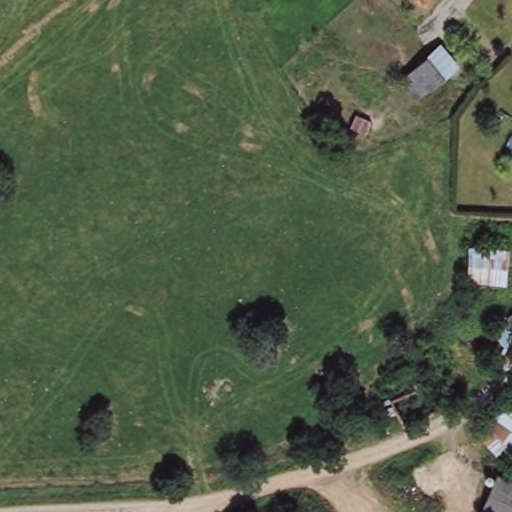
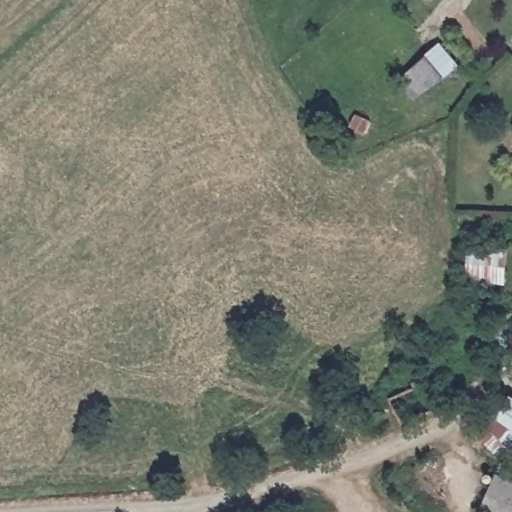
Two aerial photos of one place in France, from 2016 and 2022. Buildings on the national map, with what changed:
unchanged [(427,55),(440,44),(458,65),(445,77),(415,98),(398,79),(427,55)]
unchanged [(369,127),(366,133),(350,126),(351,122),(355,114),(371,122),(369,127)]
unchanged [(468,247),(510,249),(505,282),(466,277),(468,247)]
unchanged [(505,346),(491,330),(512,312),(512,365),(500,373),(491,357),(505,346)]
unchanged [(471,430),(487,416),(505,395),(512,400),(512,460),(490,451),(471,430)]
unchanged [(492,473),(512,481),(512,512),(476,512),(492,473)]

